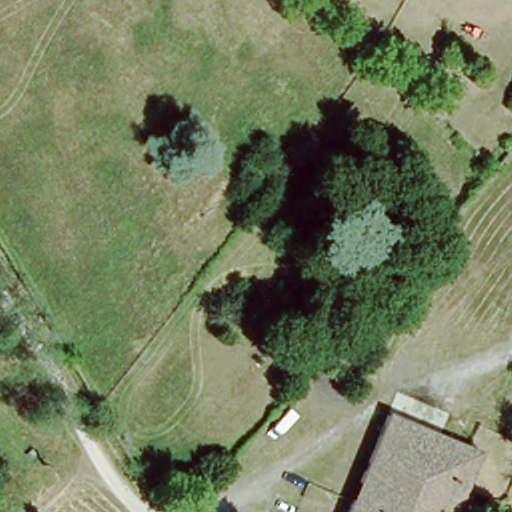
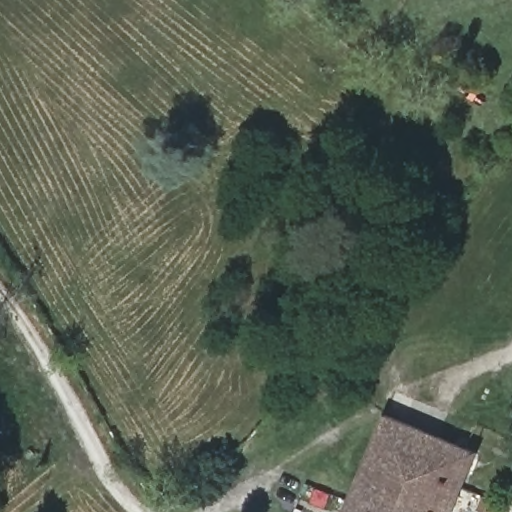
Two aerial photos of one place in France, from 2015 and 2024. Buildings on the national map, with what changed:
unchanged [(365,290),(374,298),(363,307),(355,299),(365,290)]
unchanged [(449,512),(342,512),(380,415),(383,416),(387,418),(391,420),(403,424),(414,428),(417,430),(423,431),(429,434),(445,440),(474,452),(449,512)]

